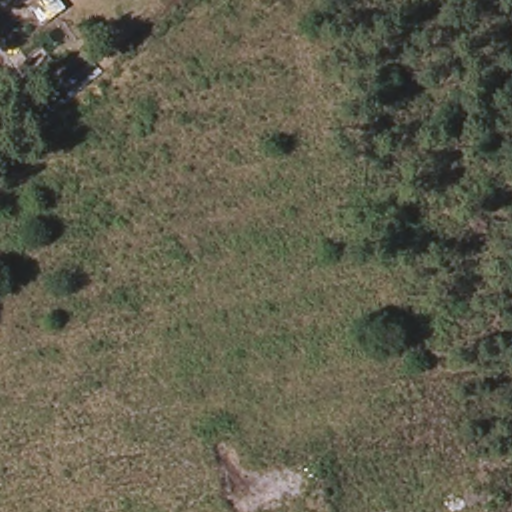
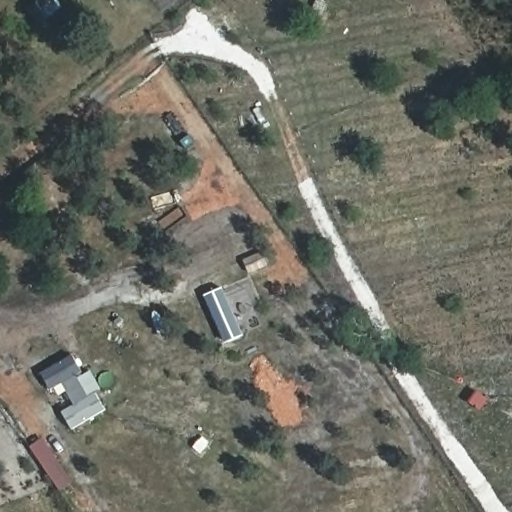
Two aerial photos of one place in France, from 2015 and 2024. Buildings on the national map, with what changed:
new [(77,375),(89,396),(95,392),(105,411),(73,430),(64,413),(75,407),(62,384),(51,390),(41,373),(72,356),(81,372),(77,375)]

